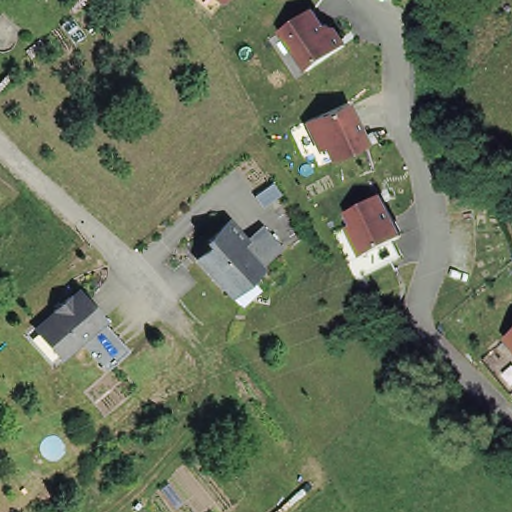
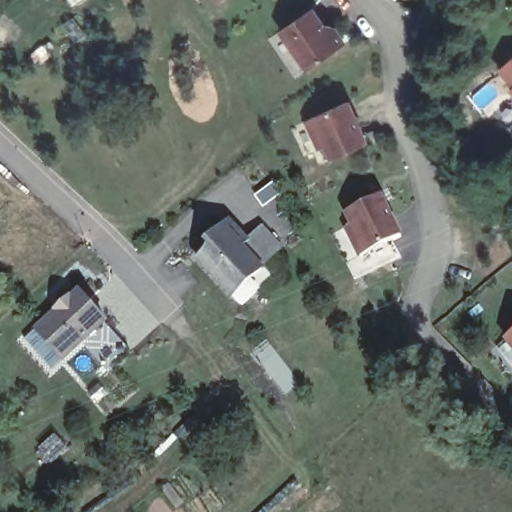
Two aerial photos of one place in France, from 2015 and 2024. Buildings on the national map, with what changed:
unchanged [(220,0),(222,0),(221,1),(220,0)]
unchanged [(311,9),(327,33),(333,29),(344,45),(308,70),(280,30),(311,9)]
new [(512,57),(512,91),(495,70),(512,57)]
unchanged [(311,120),(351,101),(371,143),(336,160),(330,146),(324,150),(311,120)]
unchanged [(384,194),(405,235),(364,255),(350,227),(356,223),(351,211),(384,194)]
unchanged [(226,286),(196,254),(211,241),(206,236),(226,217),(244,236),(239,241),(240,242),(254,229),(273,249),(258,262),(259,263),(246,277),(231,290),(226,286)]
unchanged [(55,345),(41,330),(64,309),(62,307),(73,296),(75,298),(83,290),(109,319),(71,355),(68,358),(55,345)]
unchanged [(512,337),(511,335),(512,334),(512,337)]
unchanged [(511,335),(512,337),(512,391),(484,357),(511,335)]

